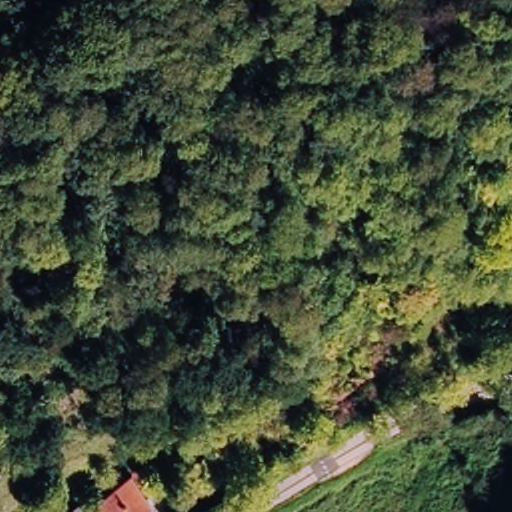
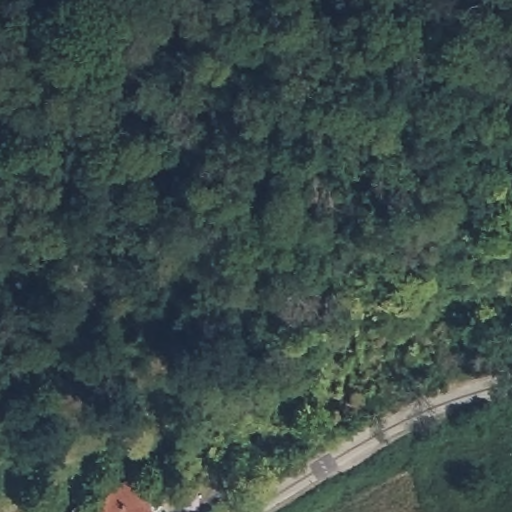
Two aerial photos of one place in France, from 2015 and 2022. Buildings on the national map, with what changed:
unchanged [(160,512),(93,512),(131,482),(128,477),(141,467),(158,491),(149,497),(161,512),(160,512)]
unchanged [(88,507),(92,512),(82,512),(88,507)]

